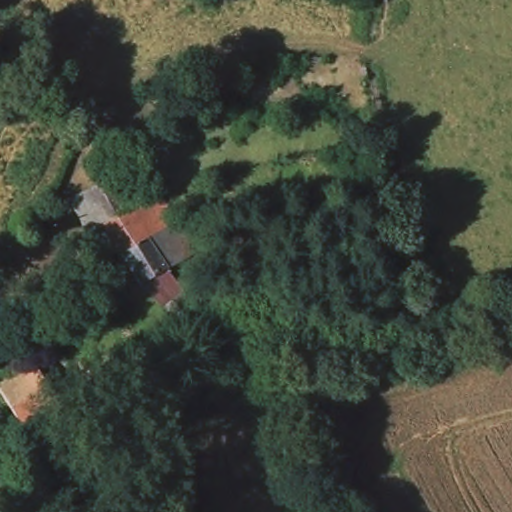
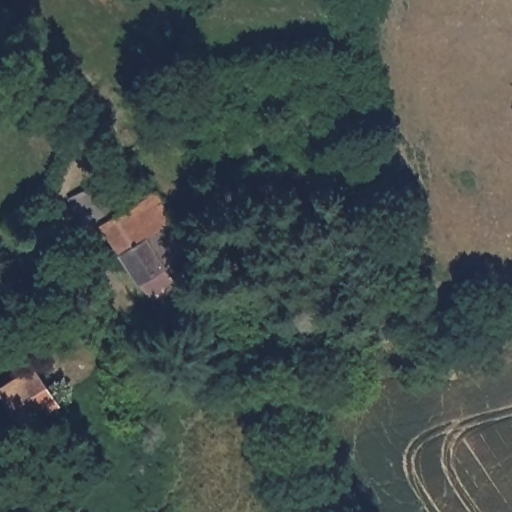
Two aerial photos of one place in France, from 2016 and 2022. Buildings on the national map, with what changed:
unchanged [(87,140),(72,161),(66,157),(47,146),(62,121),(87,140)]
unchanged [(132,126),(136,151),(113,152),(110,128),(132,126)]
unchanged [(130,200),(142,194),(154,222),(111,259),(100,238),(86,245),(70,216),(61,199),(107,181),(112,192),(124,187),(130,200)]
unchanged [(177,324),(167,319),(162,324),(151,316),(136,305),(111,259),(154,222),(172,250),(147,272),(169,294),(177,302),(186,311),(177,324)]
unchanged [(212,316),(217,306),(247,318),(241,330),(237,339),(197,323),(202,312),(212,316)]
unchanged [(49,399),(28,416),(19,422),(11,415),(0,398),(0,383),(25,365),(49,399)]

